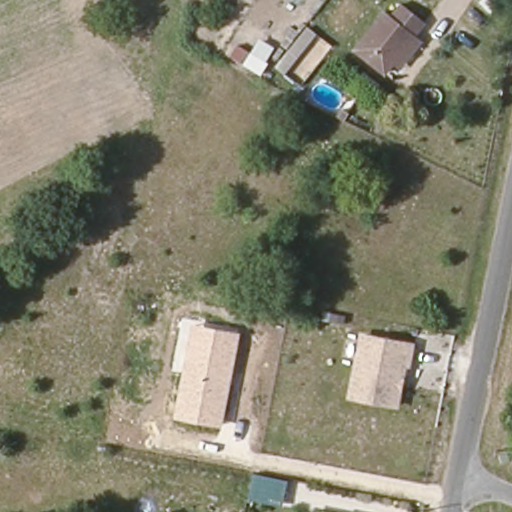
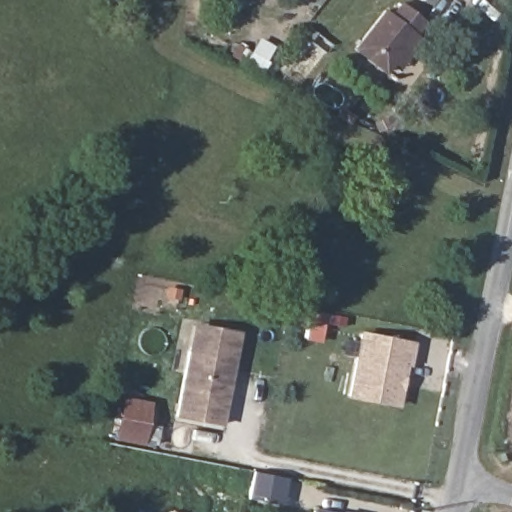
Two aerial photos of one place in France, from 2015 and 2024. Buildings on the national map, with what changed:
unchanged [(401,71),(393,66),(385,77),(356,52),(397,1),(426,25),(416,38),(422,45),(401,71)]
unchanged [(222,426),(174,418),(194,323),(240,332),(222,426)]
unchanged [(415,342),(412,361),(408,361),(399,402),(353,393),(364,332),(415,342)]
new [(122,396),(164,405),(156,446),(114,438),(122,396)]
unchanged [(283,505),(246,497),(252,472),(289,480),(283,505)]
unchanged [(322,512),(312,512),(313,510),(322,512)]
unchanged [(171,512),(170,512),(170,511),(171,512)]

